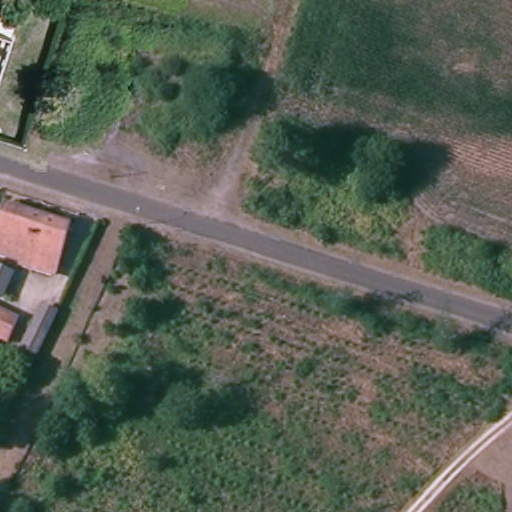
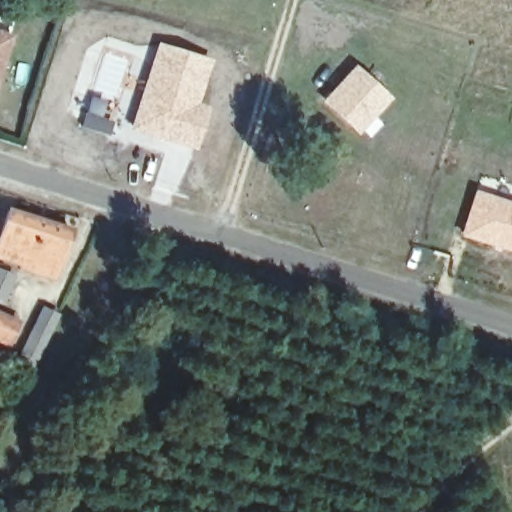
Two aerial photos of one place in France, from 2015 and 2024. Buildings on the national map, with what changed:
unchanged [(0,77),(0,33),(13,36),(0,77)]
new [(156,41),(213,58),(199,102),(209,106),(194,152),(129,129),(156,41)]
new [(354,64),(392,98),(359,136),(320,101),(354,64)]
new [(86,111),(115,121),(110,136),(81,128),(86,111)]
new [(474,189),(512,201),(512,252),(459,235),(474,189)]
unchanged [(0,260),(0,235),(7,212),(70,231),(58,269),(56,277),(13,264),(0,260)]
unchanged [(0,281),(0,272),(1,270),(2,268),(12,272),(8,284),(0,281)]
unchanged [(60,313),(33,381),(11,369),(37,307),(60,313)]
unchanged [(6,347),(0,344),(0,317),(16,325),(6,347)]

